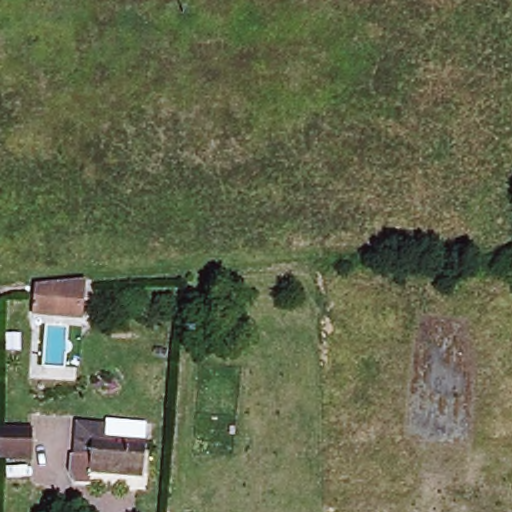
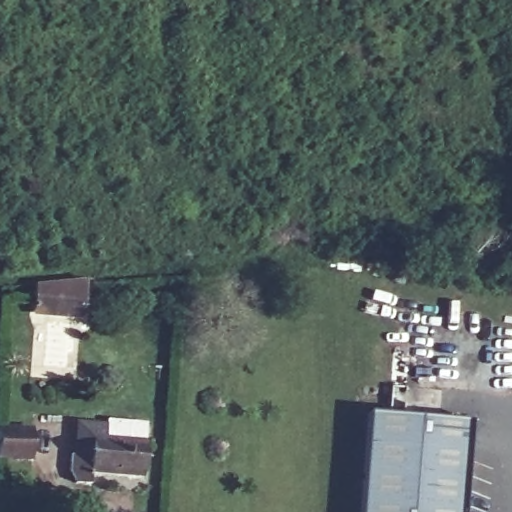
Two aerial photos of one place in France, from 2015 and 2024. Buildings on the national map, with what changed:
unchanged [(69,317),(20,318),(19,288),(47,285),(68,284),(69,317)]
new [(355,512),(360,413),(464,419),(459,512),(355,512)]
unchanged [(0,457),(0,426),(34,426),(34,439),(34,457),(21,457),(0,457)]
unchanged [(77,458),(78,426),(106,427),(106,439),(148,440),(148,475),(96,474),(94,476),(94,486),(73,486),(73,458),(77,458)]

